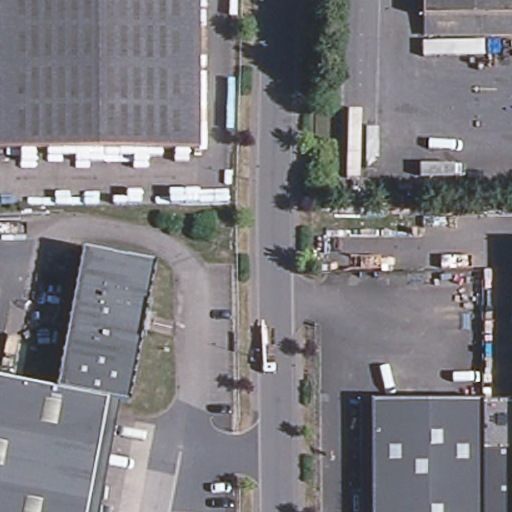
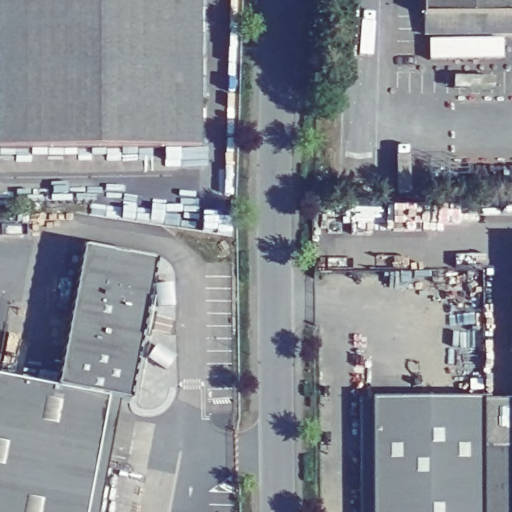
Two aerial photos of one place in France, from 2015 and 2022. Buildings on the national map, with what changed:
unchanged [(0,150),(0,0),(198,0),(197,150),(0,150)]
unchanged [(425,0),(512,0),(512,19),(425,23),(425,0)]
unchanged [(426,41),(425,23),(512,19),(512,37),(426,41)]
unchanged [(326,239),(423,238),(423,274),(401,274),(401,261),(377,261),(377,274),(326,275),(326,239)]
unchanged [(57,391),(84,253),(158,268),(132,406),(110,402),(57,391)]
unchanged [(110,402),(90,512),(0,512),(0,380),(57,391),(110,402)]
unchanged [(364,403),(376,403),(376,402),(487,400),(488,400),(488,512),(364,512),(364,403)]

